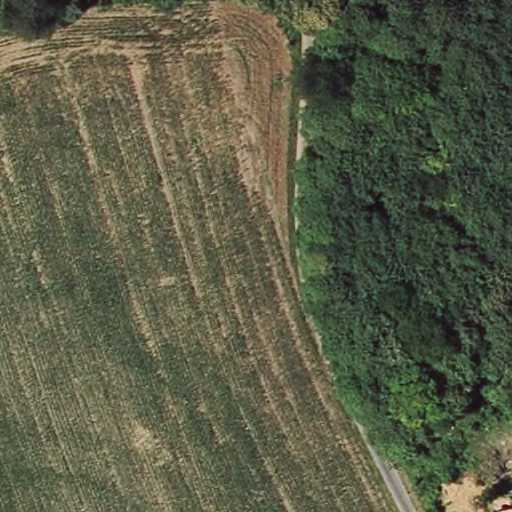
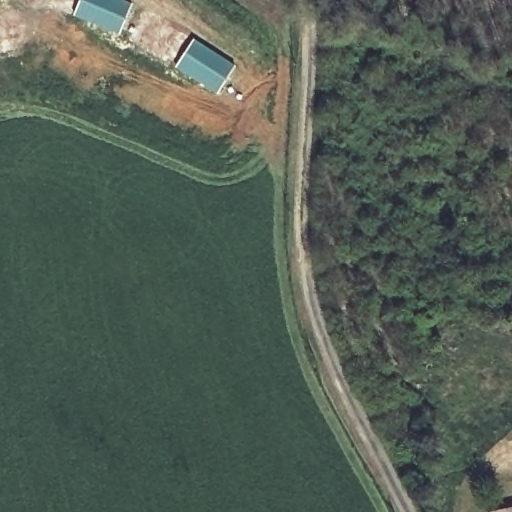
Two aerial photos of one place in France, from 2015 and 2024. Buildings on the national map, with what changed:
new [(75,0),(122,0),(129,4),(113,33),(70,10),(75,0)]
new [(20,5),(33,36),(0,51),(0,14),(20,5)]
new [(173,67),(191,38),(234,63),(216,93),(173,67)]

